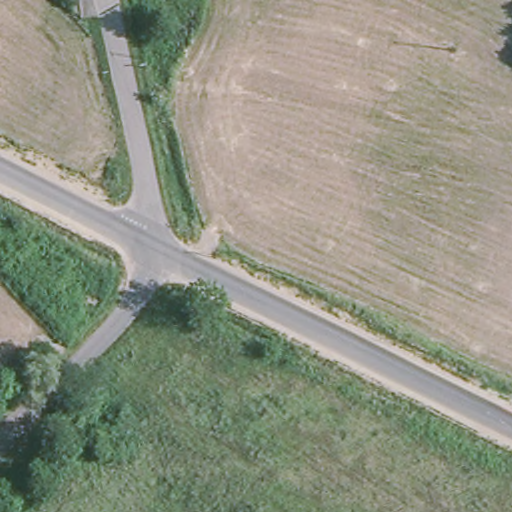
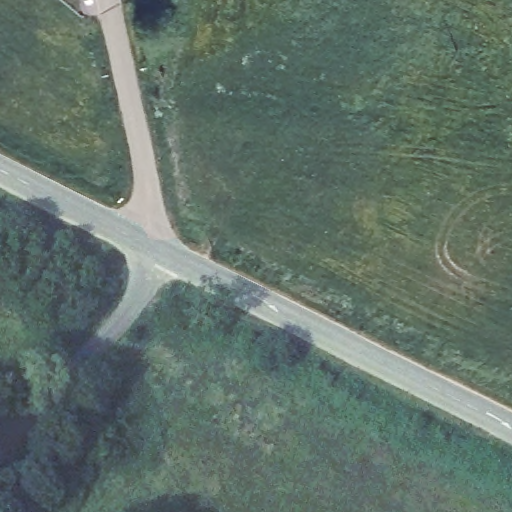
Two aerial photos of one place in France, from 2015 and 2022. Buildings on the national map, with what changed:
[]

